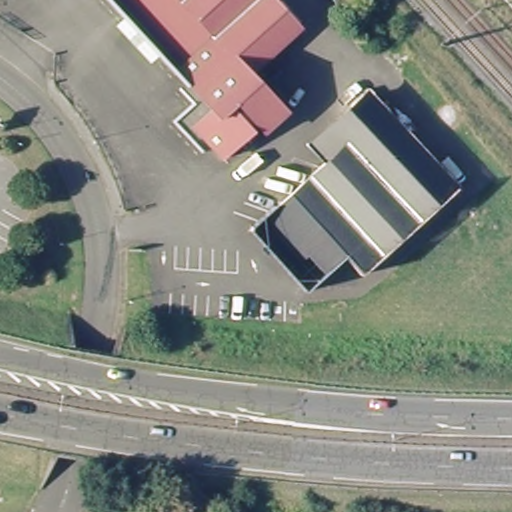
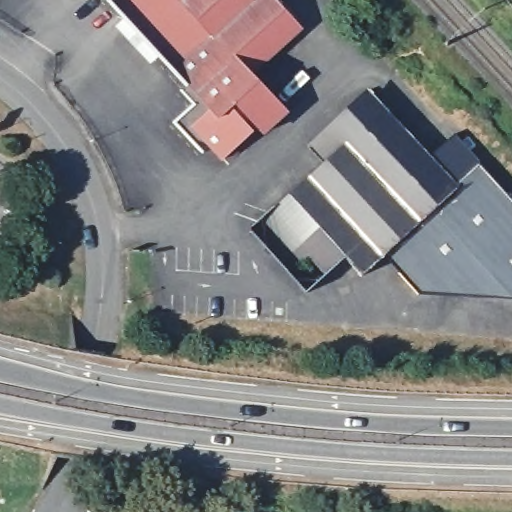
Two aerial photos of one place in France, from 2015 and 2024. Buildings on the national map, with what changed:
unchanged [(196,93),(165,62),(155,71),(118,29),(129,20),(111,0),(269,0),(298,33),(252,78),(285,116),(264,134),(258,128),(223,158),(190,121),(179,108),(196,93)]
unchanged [(271,215),(329,164),(313,148),(328,134),(369,100),(450,190),(357,273),(341,257),(323,272),(308,256),(289,272),(259,238),(253,232),(271,215)]
new [(480,164),(478,166),(512,202),(512,299),(418,294),(382,251),(450,190),(423,160),(454,135),(480,164)]

